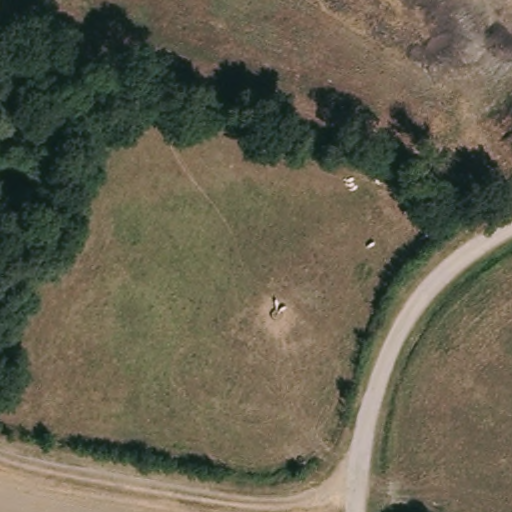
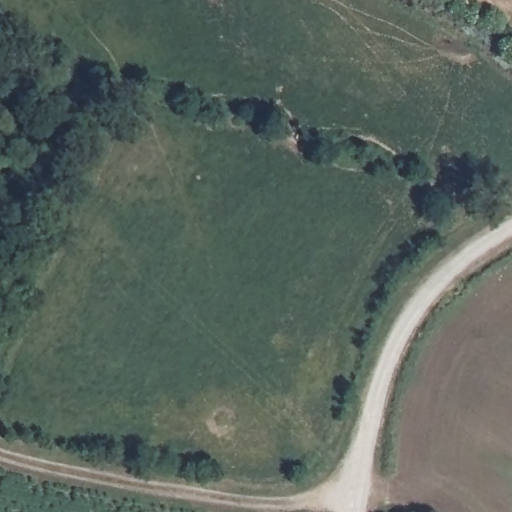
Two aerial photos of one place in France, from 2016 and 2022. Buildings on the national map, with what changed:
[]

